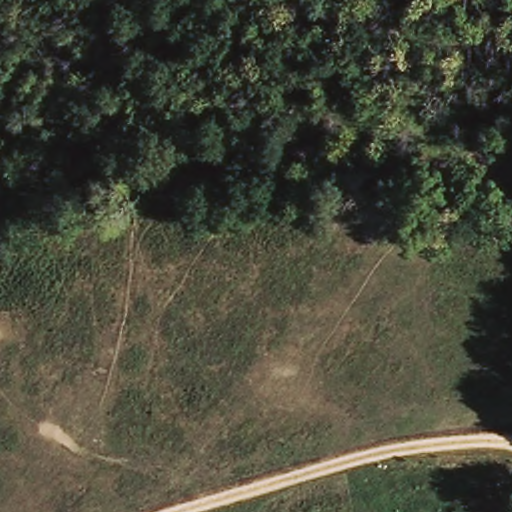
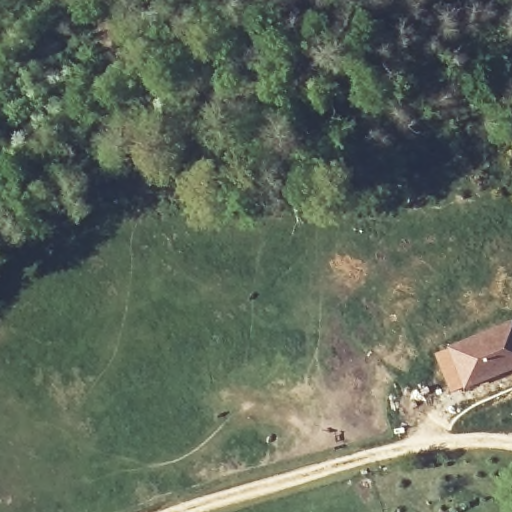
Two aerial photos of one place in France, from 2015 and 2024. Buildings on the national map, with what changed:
new [(467,387),(450,348),(512,321),(512,369),(467,387)]

